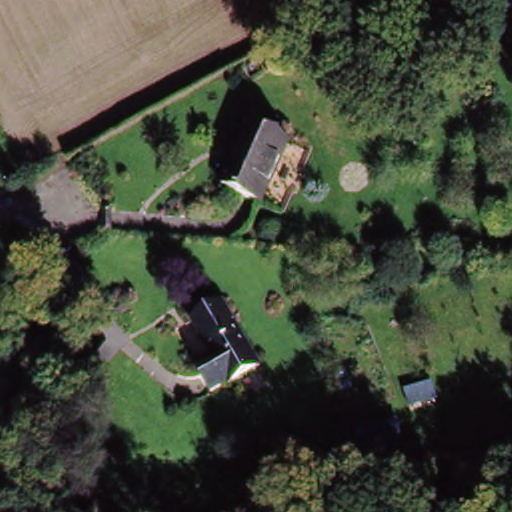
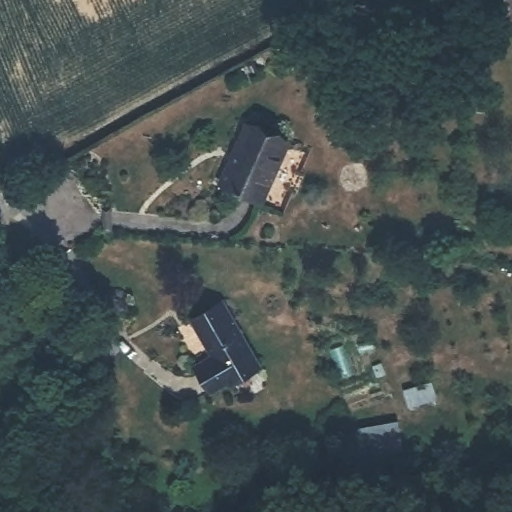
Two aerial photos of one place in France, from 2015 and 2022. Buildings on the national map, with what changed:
unchanged [(503,20),(492,0),(512,0),(512,15),(503,20)]
unchanged [(235,186),(237,132),(283,133),(281,187),(235,186)]
unchanged [(265,367),(218,402),(202,380),(217,369),(187,327),(198,318),(216,305),(233,325),(265,367)]

